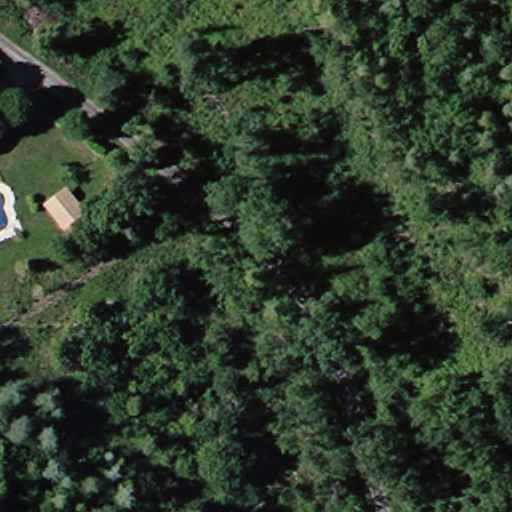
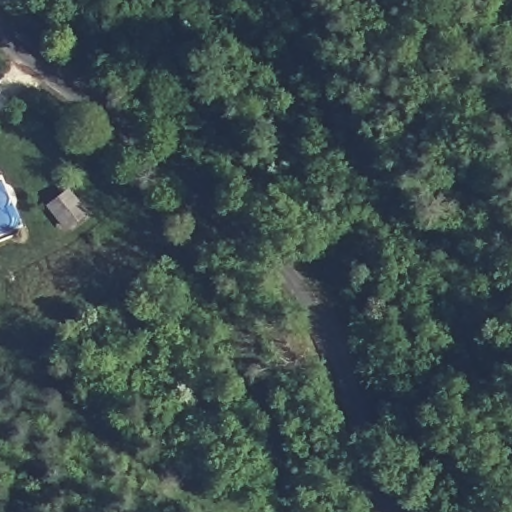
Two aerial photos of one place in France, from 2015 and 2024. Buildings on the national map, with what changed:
unchanged [(66,229),(54,213),(51,208),(68,195),(72,200),(84,216),(66,229)]

